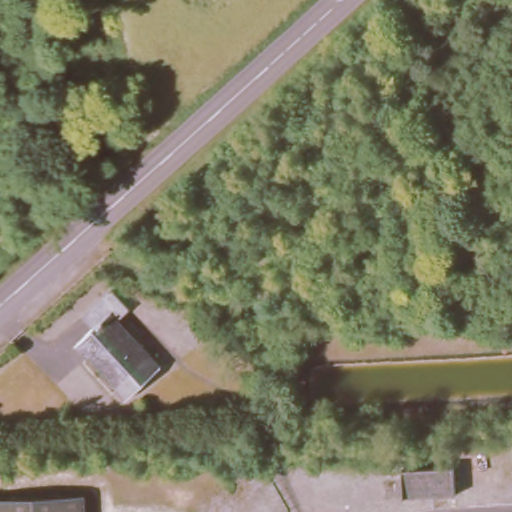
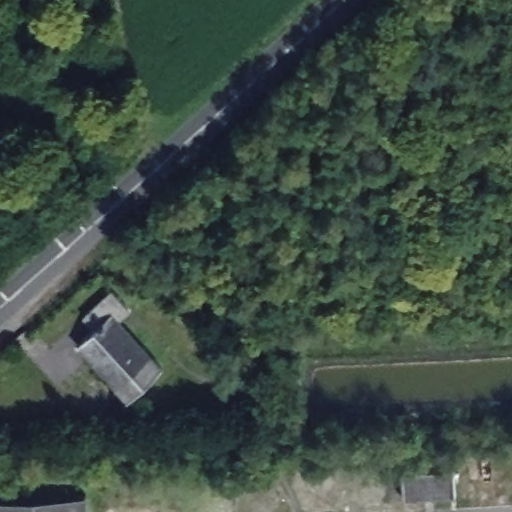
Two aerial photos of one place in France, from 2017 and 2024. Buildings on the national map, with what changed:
unchanged [(71,343),(87,326),(77,313),(107,287),(127,308),(114,318),(157,363),(117,394),(71,343)]
unchanged [(448,464),(448,494),(399,496),(396,471),(448,464)]
unchanged [(83,512),(0,512),(0,500),(82,494),(83,512)]

